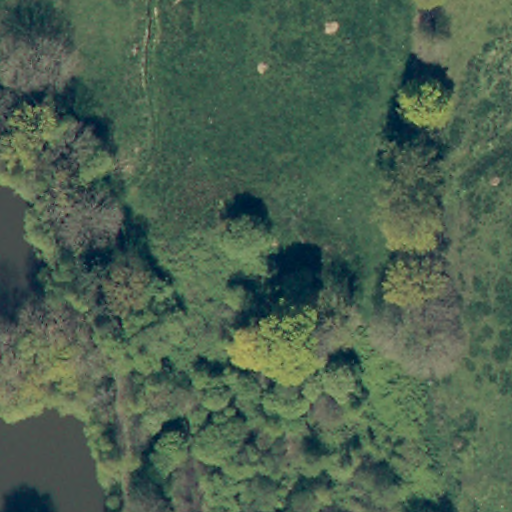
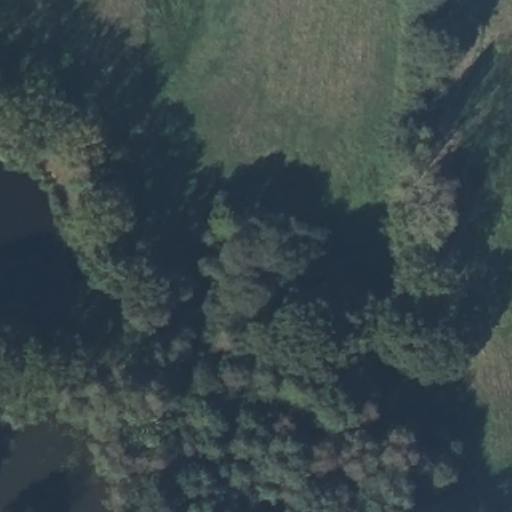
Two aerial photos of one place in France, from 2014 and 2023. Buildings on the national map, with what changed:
[]

